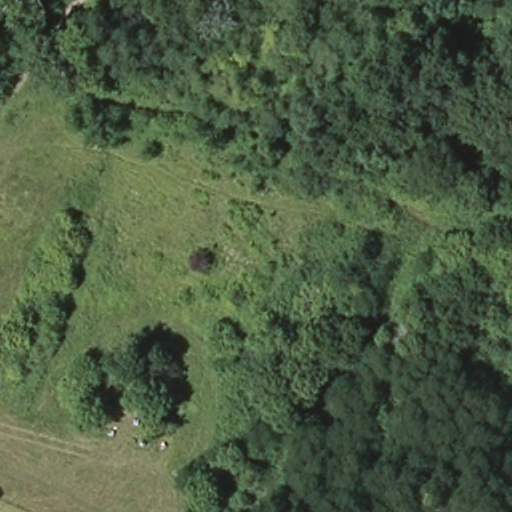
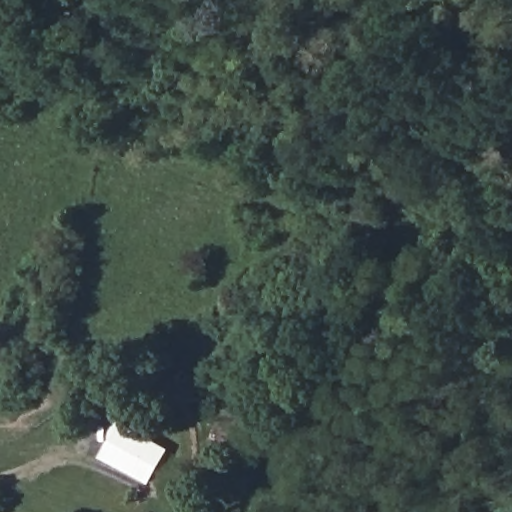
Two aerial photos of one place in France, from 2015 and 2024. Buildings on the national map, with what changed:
new [(151,484),(99,460),(117,423),(169,448),(151,484)]

